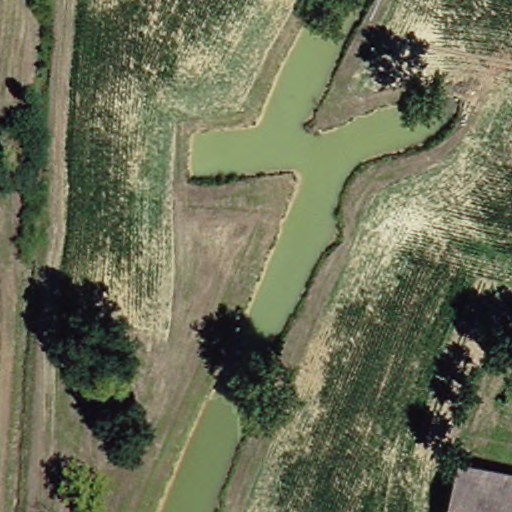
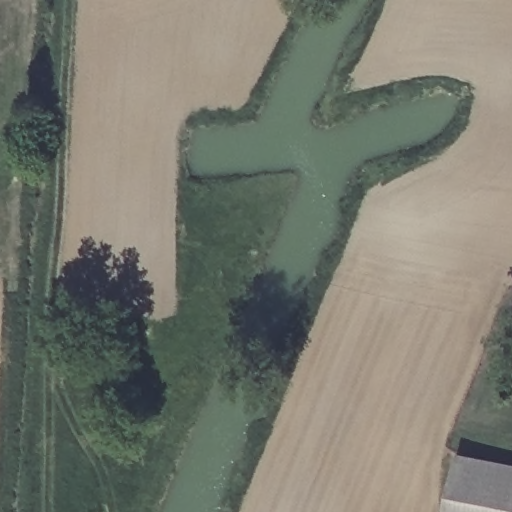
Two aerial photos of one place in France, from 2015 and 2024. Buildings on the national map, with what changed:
unchanged [(512,460),(512,512),(445,512),(457,448),(512,460)]

